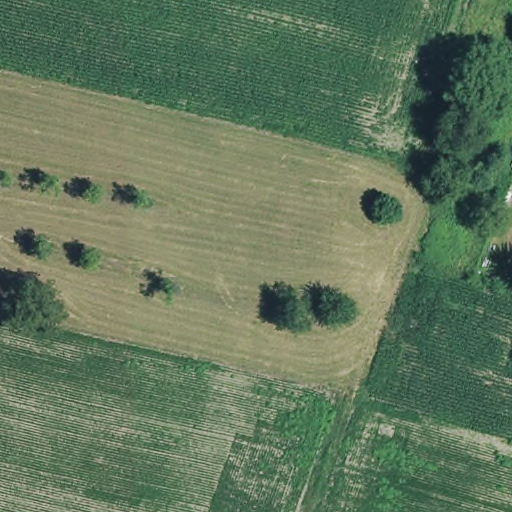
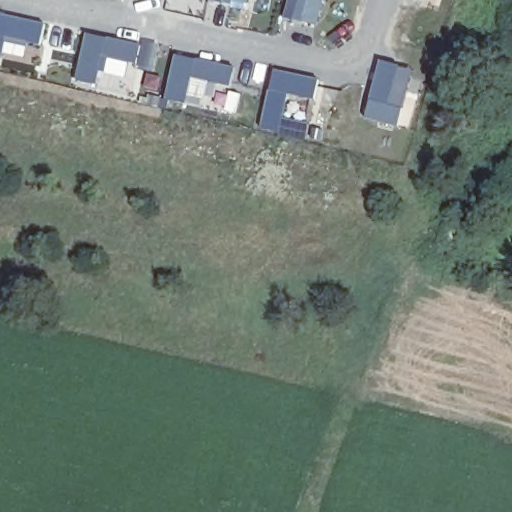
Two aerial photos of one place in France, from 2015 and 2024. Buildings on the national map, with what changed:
new [(245,6),(212,0),(246,0),(245,6)]
new [(315,25),(282,16),(287,0),(323,0),(315,25)]
new [(420,1),(416,0),(420,0),(420,1)]
new [(38,47),(8,41),(5,53),(0,52),(0,13),(45,23),(38,47)]
new [(85,31),(141,43),(136,65),(130,63),(125,80),(99,72),(95,85),(73,79),(85,31)]
new [(174,54),(235,66),(230,87),(200,81),(199,85),(195,84),(187,106),(163,100),(174,54)]
new [(378,58),(413,69),(396,127),(362,117),(378,58)]
new [(273,68),(318,79),(314,100),(287,95),(278,135),(257,130),(273,68)]

